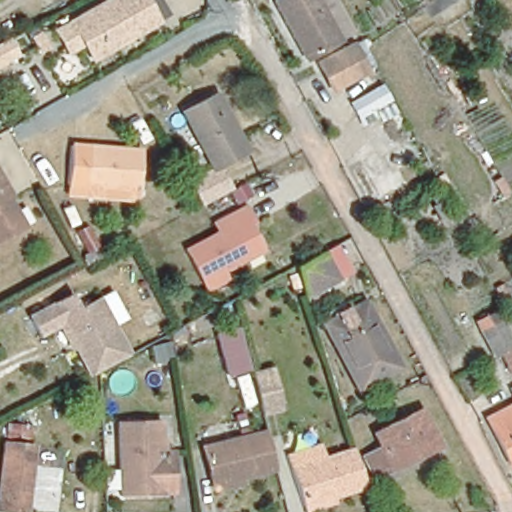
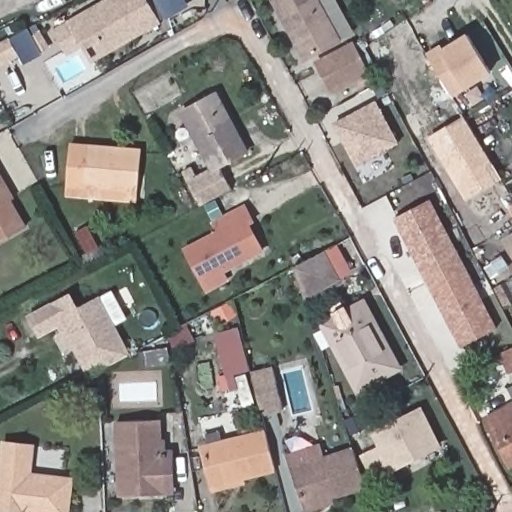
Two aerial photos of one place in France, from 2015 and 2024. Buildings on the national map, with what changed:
unchanged [(53,31),(68,22),(107,0),(142,0),(152,18),(154,22),(89,59),(87,55),(80,44),(65,52),(53,31)]
unchanged [(273,1),(276,0),(317,0),(340,40),(306,59),(273,1)]
unchanged [(353,33),(340,40),(317,0),(334,0),(353,33)]
unchanged [(45,41),(37,45),(32,36),(40,32),(45,41)]
new [(440,46),(443,49),(467,34),(490,72),(452,95),(427,54),(440,46)]
new [(7,40),(18,59),(0,70),(0,45),(7,40)]
unchanged [(353,45),(366,71),(333,89),(319,63),(353,45)]
unchanged [(247,152),(213,169),(182,111),(217,93),(247,152)]
new [(379,104),(402,147),(361,169),(338,126),(379,104)]
new [(466,200),(429,137),(464,116),(502,179),(466,200)]
unchanged [(71,145),(142,150),(137,191),(67,185),(71,145)]
unchanged [(11,203),(6,206),(21,233),(0,245),(0,184),(11,203)]
unchanged [(244,185),(250,196),(238,203),(232,191),(244,185)]
new [(431,205),(495,335),(461,351),(397,222),(431,205)]
unchanged [(206,293),(201,283),(184,250),(217,233),(212,224),(244,207),(252,223),(247,225),(261,252),(225,270),(230,281),(206,293)]
unchanged [(76,232),(88,226),(98,244),(86,250),(76,232)]
new [(512,253),(504,241),(512,236),(512,253)]
unchanged [(322,252),(335,279),(305,297),(295,267),(322,252)]
unchanged [(57,322),(35,334),(26,316),(66,295),(73,310),(94,298),(123,354),(94,369),(87,373),(85,374),(57,322)]
unchanged [(358,390),(323,323),(365,301),(400,368),(358,390)]
unchanged [(240,325),(251,371),(226,377),(214,330),(240,325)]
unchanged [(467,353),(471,362),(463,367),(458,358),(467,353)]
unchanged [(272,370),(282,409),(263,414),(252,375),(272,370)]
unchanged [(512,390),(512,393),(510,390),(512,390)]
unchanged [(512,407),(512,464),(509,465),(487,419),(512,407)]
unchanged [(377,478),(366,456),(383,447),(376,432),(422,409),(441,445),(377,478)]
unchanged [(175,494),(164,495),(120,496),(117,422),(161,420),(162,449),(174,448),(175,494)]
unchanged [(26,426),(25,438),(1,437),(2,425),(26,426)]
unchanged [(209,491),(203,470),(201,453),(262,437),(272,474),(209,491)]
unchanged [(31,448),(21,512),(2,512),(0,512),(0,461),(2,444),(31,448)]
unchanged [(305,508),(288,457),(322,445),(327,459),(355,450),(360,464),(368,487),(305,508)]
new [(70,512),(21,512),(27,472),(74,477),(70,512)]

